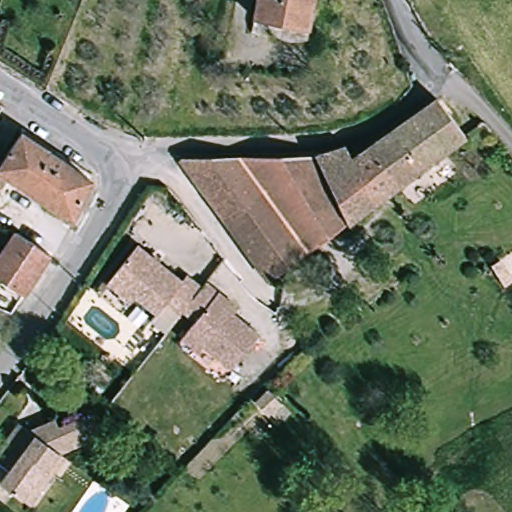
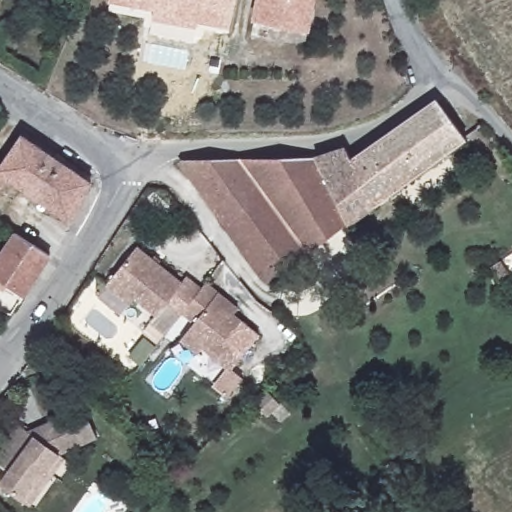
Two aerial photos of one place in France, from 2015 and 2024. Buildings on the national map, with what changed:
new [(153,20),(155,11),(110,2),(111,0),(234,0),(228,28),(197,23),(196,28),(153,20)]
unchanged [(293,41),(285,40),(277,38),(270,33),(268,28),(267,23),(252,20),(256,0),(313,0),(307,30),(305,39),(293,41)]
unchanged [(267,282),(178,162),(180,160),(304,157),(320,155),(345,147),(351,159),(435,100),(462,136),(463,138),(267,282)]
unchanged [(20,135),(90,182),(70,222),(3,177),(0,182),(0,164),(20,135)]
unchanged [(1,215),(0,217),(0,214),(1,215)]
unchanged [(27,295),(0,277),(0,263),(19,234),(53,256),(27,295)]
unchanged [(48,249),(43,246),(45,242),(50,244),(48,249)]
unchanged [(185,278),(190,272),(205,284),(199,291),(195,296),(186,307),(166,332),(151,320),(160,310),(138,293),(133,298),(110,280),(115,274),(140,242),(185,278)]
unchanged [(186,335),(191,329),(200,318),(186,307),(195,296),(199,291),(205,284),(210,278),(241,304),(237,310),(263,331),(235,365),(208,343),(204,349),(186,335)]
unchanged [(280,404),(265,415),(254,401),(268,389),(280,404)]
unchanged [(28,505),(0,484),(0,482),(7,472),(0,467),(0,447),(17,423),(28,431),(54,420),(57,428),(86,415),(96,437),(58,454),(63,457),(28,505)]

